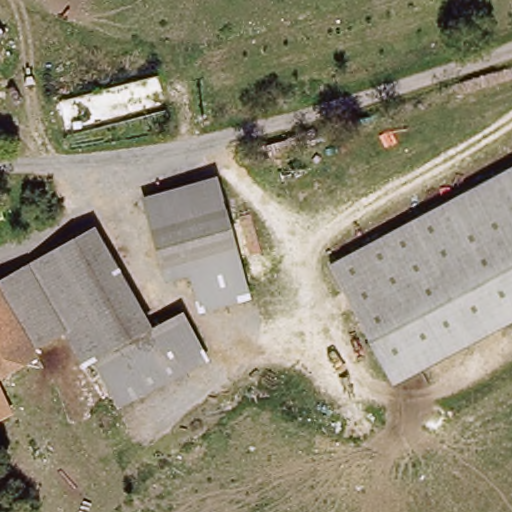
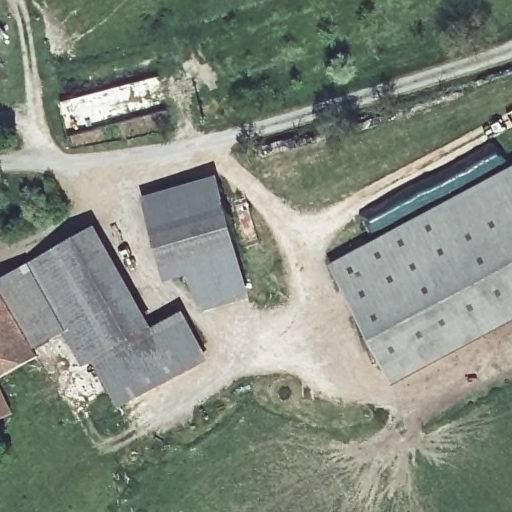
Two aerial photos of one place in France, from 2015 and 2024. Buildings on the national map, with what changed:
unchanged [(1,76),(0,76),(0,74),(1,76)]
unchanged [(333,265),(512,168),(512,321),(397,381),(333,265)]
unchanged [(235,248),(247,285),(200,300),(188,263),(164,271),(142,205),(213,181),(223,212),(235,248)]
unchanged [(94,359),(86,363),(67,332),(32,271),(96,232),(148,325),(94,359)]
unchanged [(32,271),(67,332),(29,361),(0,314),(0,290),(32,271)]
unchanged [(179,308),(199,340),(173,355),(157,321),(179,308)]
unchanged [(29,361),(0,378),(0,314),(29,361)]
unchanged [(173,355),(113,392),(94,359),(148,325),(157,321),(173,355)]
unchanged [(7,418),(0,423),(0,406),(7,418)]

